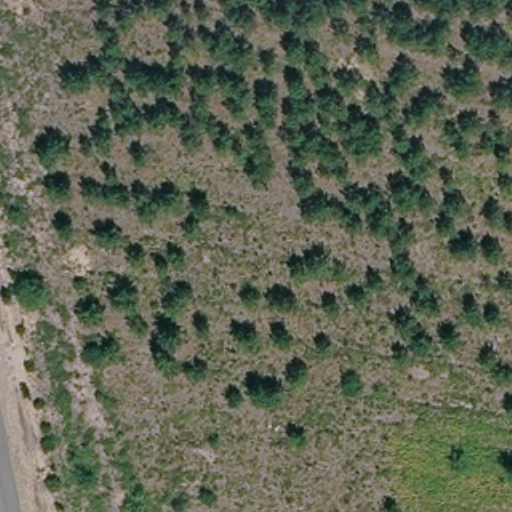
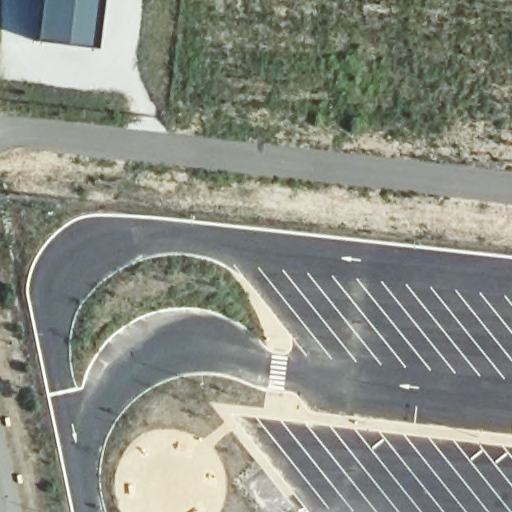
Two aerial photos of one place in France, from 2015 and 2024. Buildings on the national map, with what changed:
new [(42,0),(97,0),(91,47),(37,39),(42,0)]

